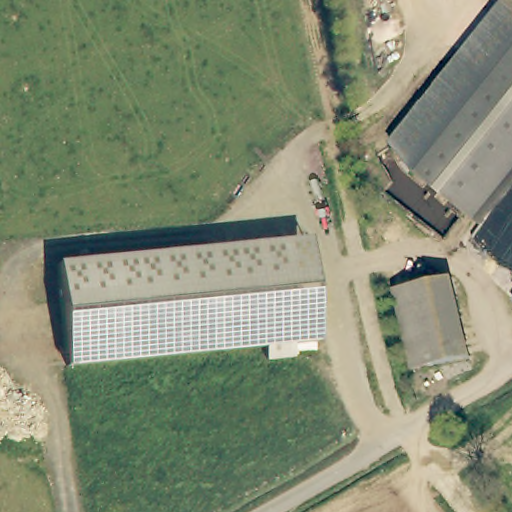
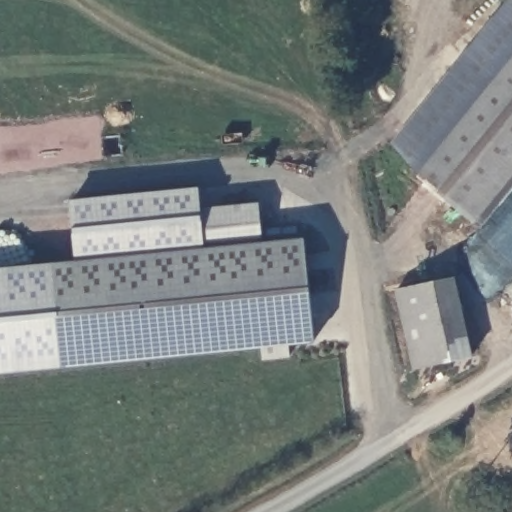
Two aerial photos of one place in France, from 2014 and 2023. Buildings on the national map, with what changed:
unchanged [(508,0),(512,0),(512,5),(507,1),(508,0)]
unchanged [(468,65),(512,10),(512,66),(496,87),(468,65)]
unchanged [(427,177),(397,153),(468,65),(496,87),(427,177)]
unchanged [(512,164),(472,214),(427,177),(496,87),(512,66),(512,164)]
new [(77,261),(71,201),(196,189),(198,207),(259,202),(263,243),(77,261)]
unchanged [(302,239),(313,343),(291,345),(290,358),(262,362),(262,347),(61,368),(52,263),(302,239)]
new [(61,368),(0,374),(0,268),(52,263),(61,368)]
unchanged [(468,360),(412,372),(396,293),(452,282),(468,360)]

